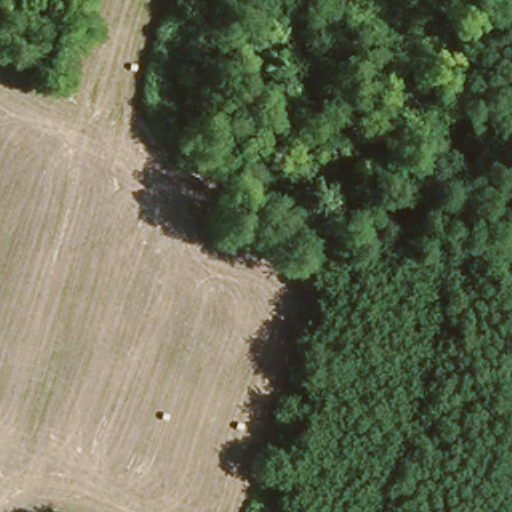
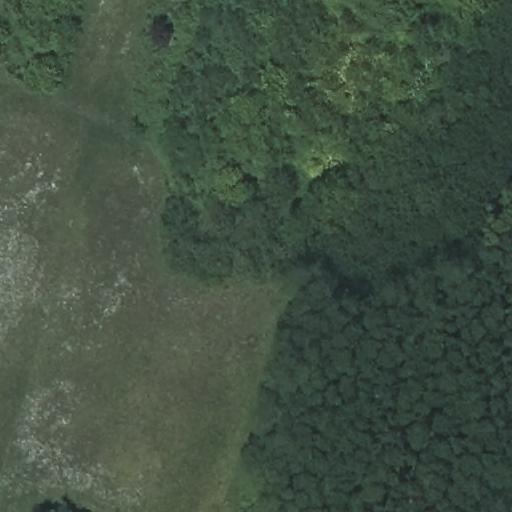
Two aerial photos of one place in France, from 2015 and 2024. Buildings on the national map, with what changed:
[]

